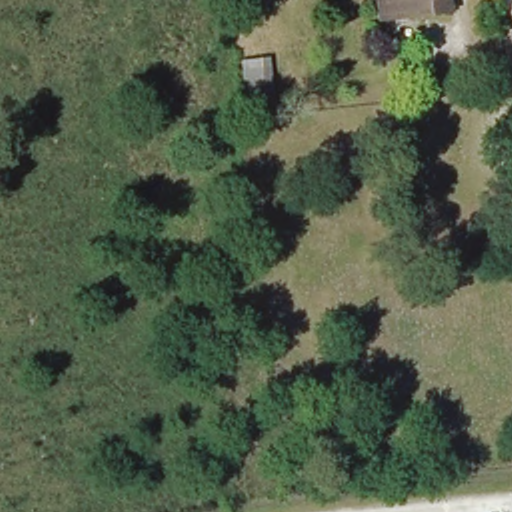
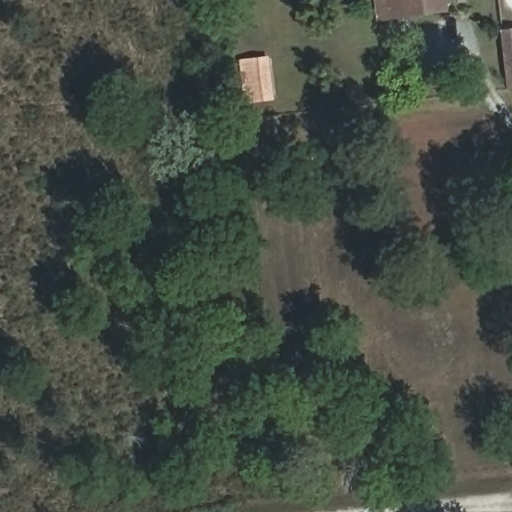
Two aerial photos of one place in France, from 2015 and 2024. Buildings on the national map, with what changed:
unchanged [(374,0),(441,0),(443,13),(403,19),(389,20),(376,22),(374,0)]
unchanged [(512,31),(512,91),(503,92),(498,33),(512,31)]
unchanged [(263,59),(266,98),(244,100),(240,61),(263,59)]

